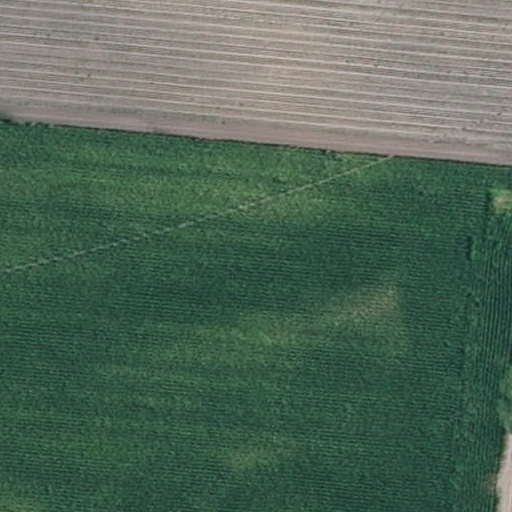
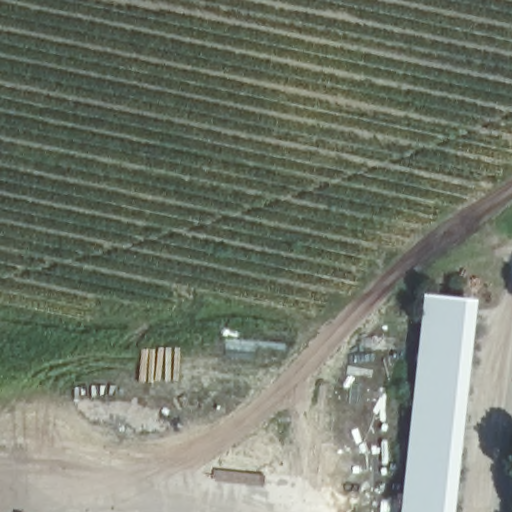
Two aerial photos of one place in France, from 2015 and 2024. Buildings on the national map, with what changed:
new [(479,301),(457,512),(401,512),(425,296),(479,301)]

